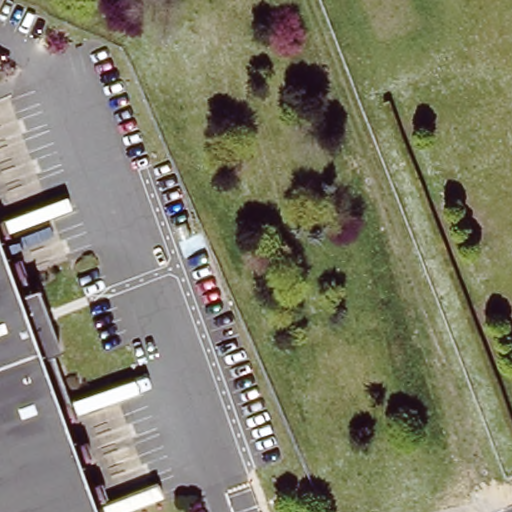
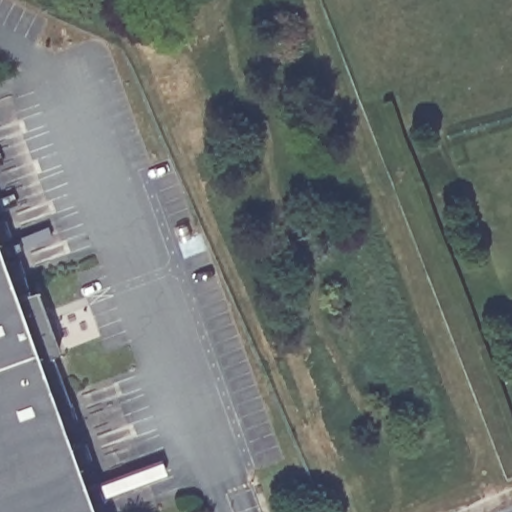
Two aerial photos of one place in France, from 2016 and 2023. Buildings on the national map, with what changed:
unchanged [(5,232),(0,233),(0,215),(5,232)]
unchanged [(2,259),(15,255),(20,271),(20,272),(25,286),(32,283),(56,346),(48,349),(66,398),(72,415),(60,419),(69,443),(80,439),(86,455),(75,460),(83,483),(95,479),(101,496),(90,500),(94,512),(0,512),(0,253),(2,259)]

